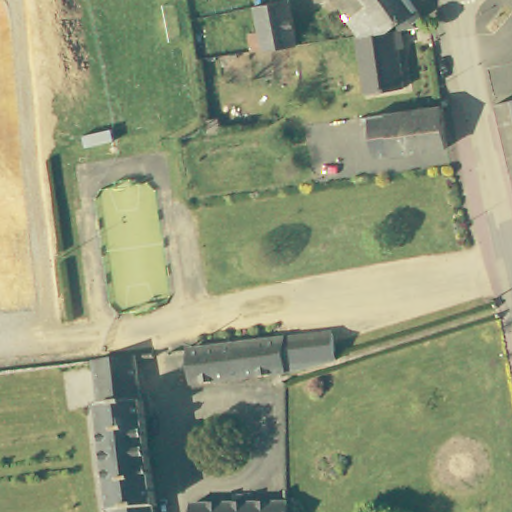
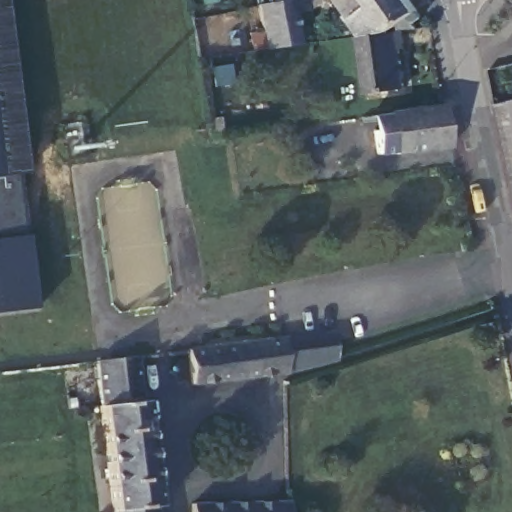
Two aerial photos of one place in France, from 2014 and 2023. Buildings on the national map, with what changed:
new [(25,174),(21,174),(34,309),(0,313),(0,0),(4,0),(25,174)]
unchanged [(259,2),(267,0),(291,0),(299,41),(267,45),(259,2)]
unchanged [(348,21),(371,8),(366,0),(416,0),(423,7),(391,32),(359,36),(348,21)]
unchanged [(391,32),(399,31),(401,48),(396,49),(402,89),(363,94),(355,37),(359,36),(391,32)]
unchanged [(512,174),(497,107),(512,102),(512,174)]
unchanged [(451,149),(395,157),(395,153),(376,156),(371,116),(444,107),(451,149)]
unchanged [(335,361),(284,373),(282,337),(329,331),(335,361)]
unchanged [(189,384),(185,349),(262,339),(282,337),(284,373),(284,374),(189,384)]
unchanged [(142,402),(154,506),(152,506),(153,512),(111,512),(93,361),(133,356),(138,402),(142,402)]
unchanged [(290,499),(291,512),(190,512),(190,500),(290,499)]

